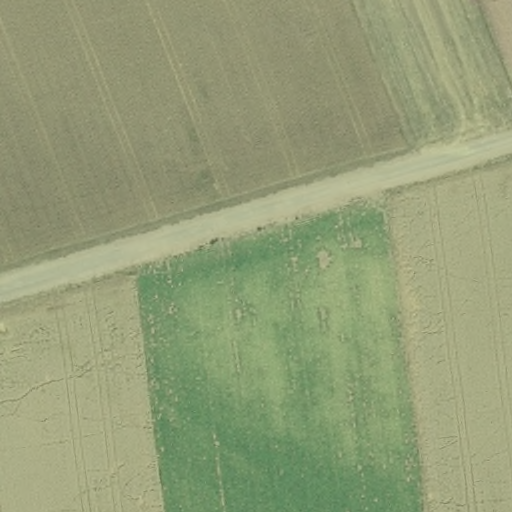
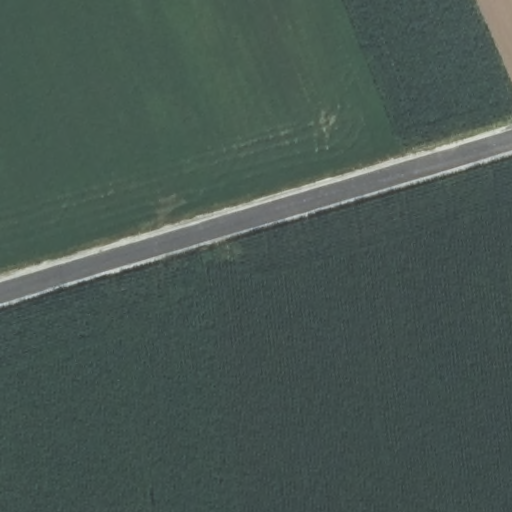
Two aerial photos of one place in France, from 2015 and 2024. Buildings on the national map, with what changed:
[]

